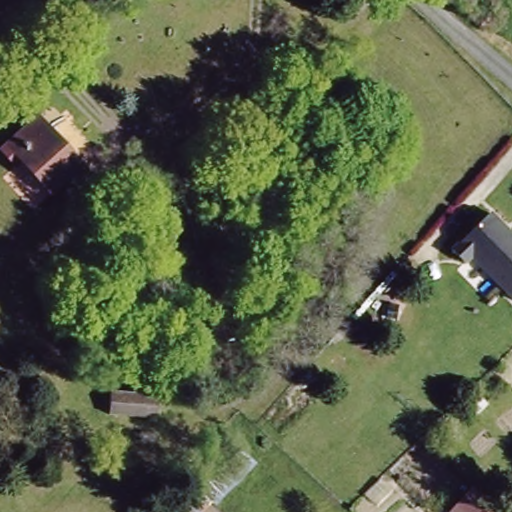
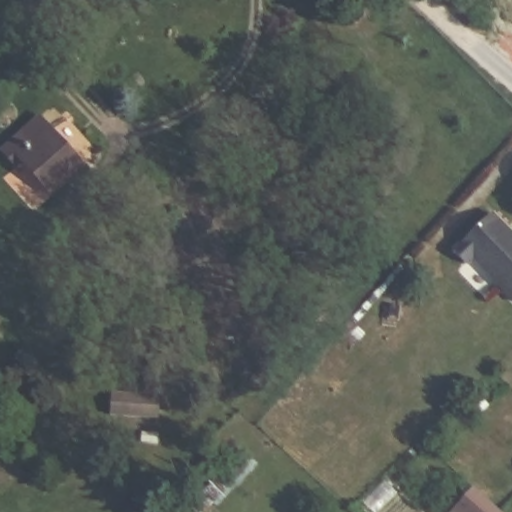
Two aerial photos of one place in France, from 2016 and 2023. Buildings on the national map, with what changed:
unchanged [(37,114),(84,161),(55,189),(25,159),(17,166),(0,149),(37,114)]
unchanged [(494,212),(512,230),(512,298),(474,258),(467,264),(452,249),(494,212)]
unchanged [(85,255),(59,234),(73,219),(100,241),(94,247),(85,255)]
unchanged [(0,332),(0,321),(2,332),(0,332)]
unchanged [(159,396),(157,417),(107,414),(110,391),(159,396)]
unchanged [(212,512),(196,512),(182,499),(232,441),(257,464),(212,512)]
unchanged [(477,485),(505,512),(450,512),(477,485)]

